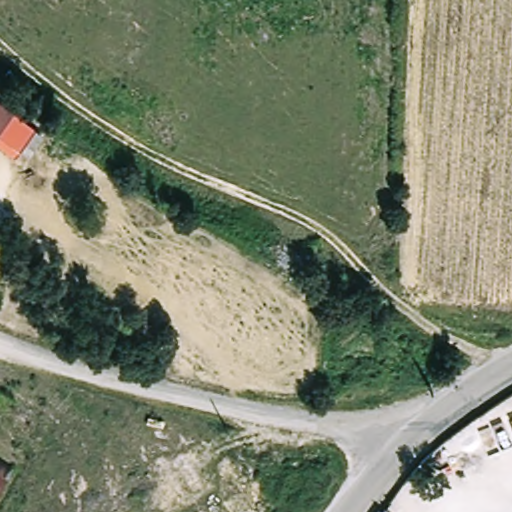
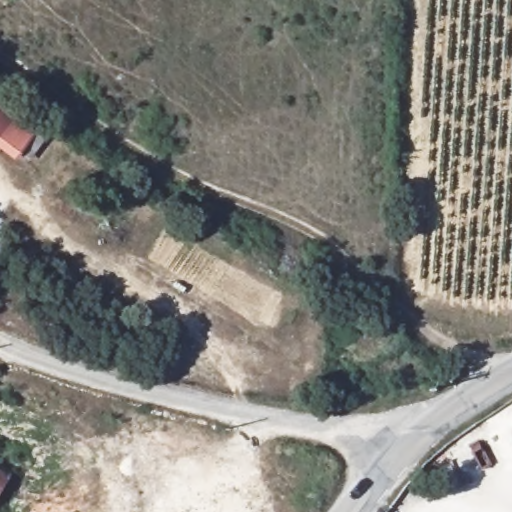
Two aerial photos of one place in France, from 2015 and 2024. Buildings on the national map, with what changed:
unchanged [(0,141),(0,105),(24,123),(6,148),(0,141)]
unchanged [(0,469),(10,474),(0,491),(0,469)]

